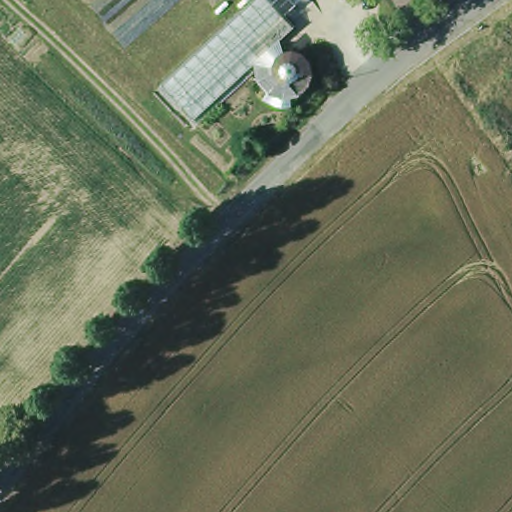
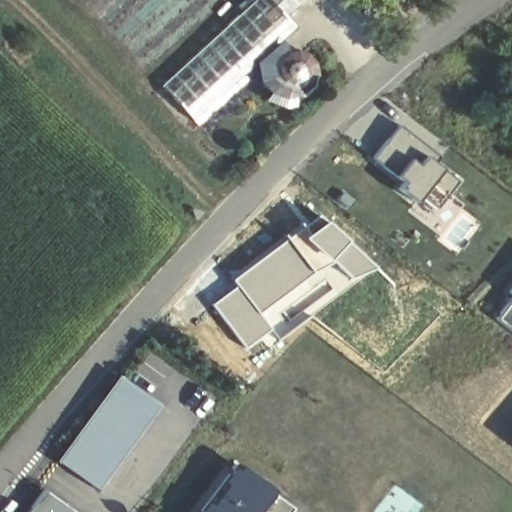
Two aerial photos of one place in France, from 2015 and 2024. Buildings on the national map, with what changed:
unchanged [(75,0),(93,0),(83,9),(75,0)]
unchanged [(271,0),(294,25),(275,41),(253,61),(191,118),(158,83),(248,0),(271,0)]
unchanged [(275,41),(279,52),(284,49),(292,48),(300,50),(306,54),(309,59),(311,65),(311,72),(311,79),(308,85),(303,90),(299,93),(291,95),(284,95),(279,94),(273,92),(268,90),(264,86),(261,81),(258,74),(253,61),(275,41)]
new [(397,124),(429,150),(428,153),(423,149),(414,159),(409,155),(392,176),(370,158),(397,124)]
new [(409,155),(414,159),(423,149),(428,153),(459,178),(435,209),(419,196),(413,203),(394,187),(398,181),(392,176),(409,155)]
new [(296,227),(301,234),(323,217),(375,266),(285,333),(284,330),(278,335),(272,330),(233,284),(229,279),(296,227)]
new [(512,283),(512,296),(511,295),(506,291),(512,283)]
new [(233,284),(272,330),(244,350),(209,304),(233,284)]
new [(511,295),(512,296),(512,333),(494,319),(511,295)]
new [(100,493),(56,460),(119,376),(162,408),(100,493)]
new [(292,512),(197,512),(236,462),(270,488),(295,508),(292,512)]
new [(44,487),(76,512),(27,512),(44,487)]

